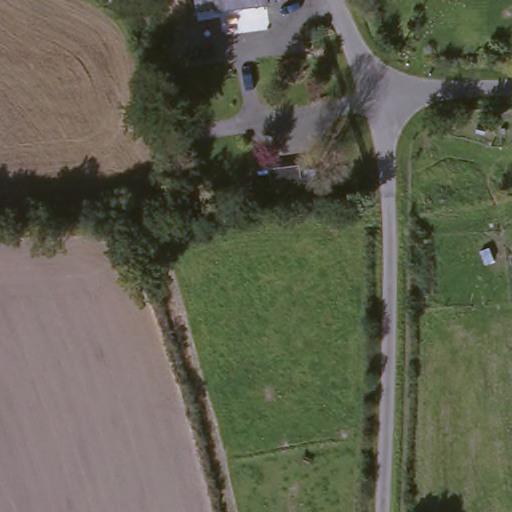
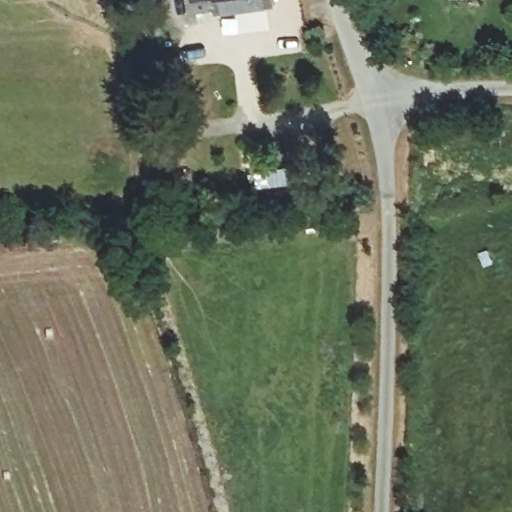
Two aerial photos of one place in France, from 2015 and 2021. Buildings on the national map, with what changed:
unchanged [(274,7),(213,12),(213,4),(193,5),(193,0),(273,0),(274,7)]

